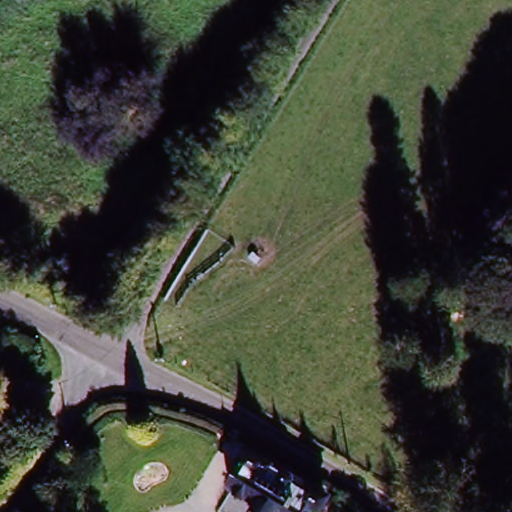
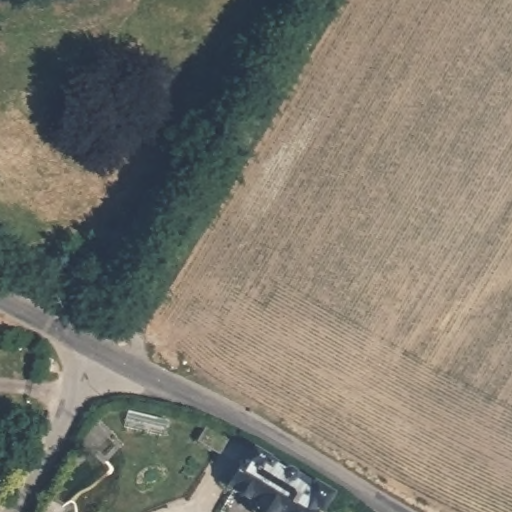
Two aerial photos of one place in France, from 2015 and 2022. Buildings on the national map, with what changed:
unchanged [(298,512),(293,510),(292,512),(269,512),(247,501),(253,490),(233,478),(245,455),(322,494),(312,512),(298,512)]

